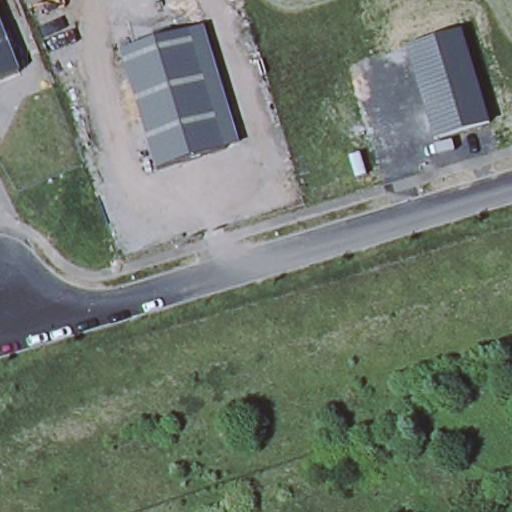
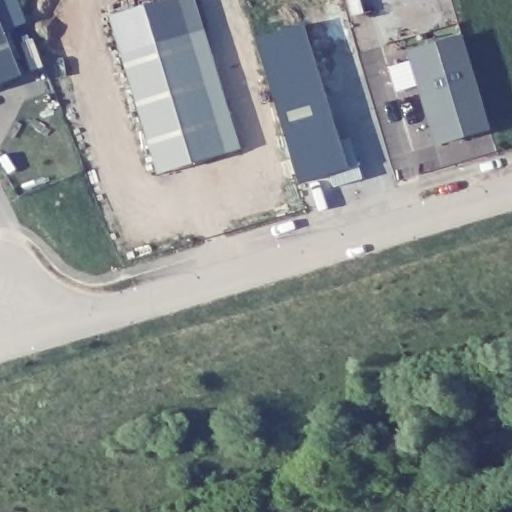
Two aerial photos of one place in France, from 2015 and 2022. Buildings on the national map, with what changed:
new [(110,17),(161,0),(197,0),(207,29),(122,57),(110,17)]
unchanged [(0,84),(0,17),(23,75),(0,84)]
new [(256,38),(305,24),(349,170),(300,185),(256,38)]
unchanged [(243,152),(160,180),(122,57),(207,29),(243,152)]
unchanged [(492,134),(439,149),(410,54),(465,36),(492,134)]

